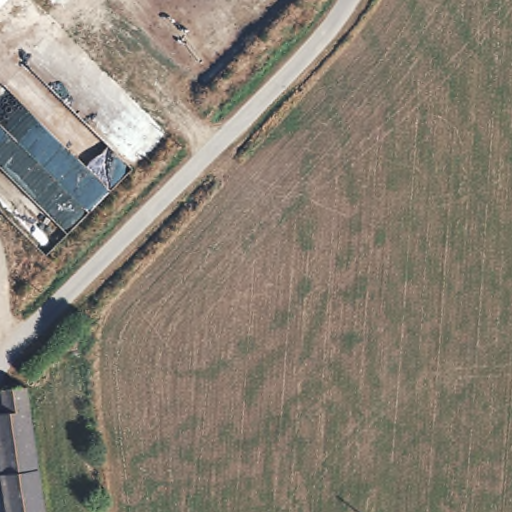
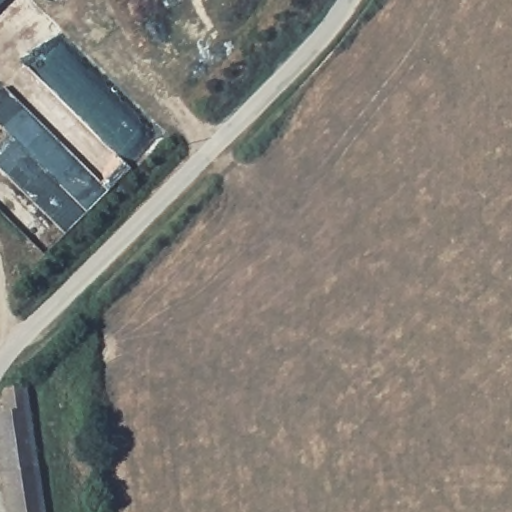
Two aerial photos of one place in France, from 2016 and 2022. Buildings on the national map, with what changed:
unchanged [(0,0),(4,0),(0,4),(0,0)]
unchanged [(41,512),(8,512),(0,469),(0,417),(4,417),(0,399),(23,396),(41,512)]

